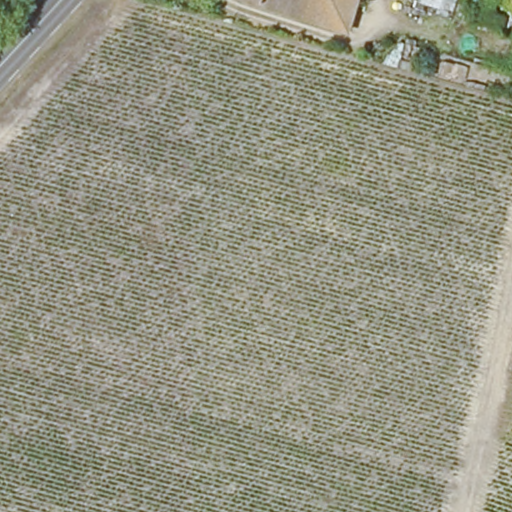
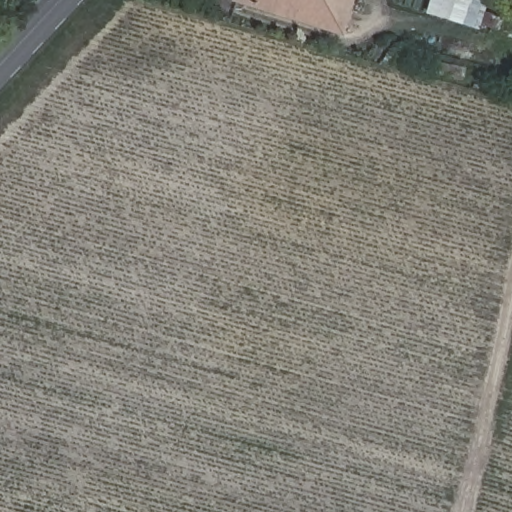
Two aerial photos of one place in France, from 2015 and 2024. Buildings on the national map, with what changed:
unchanged [(232,1),(233,0),(353,0),(344,33),(232,1)]
new [(433,0),(483,0),(493,3),(485,29),(430,12),(433,0)]

